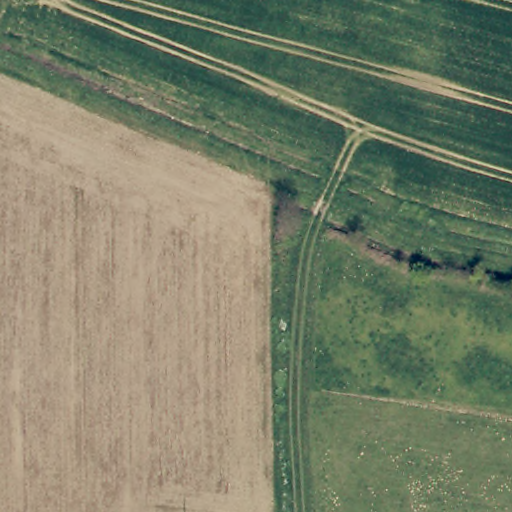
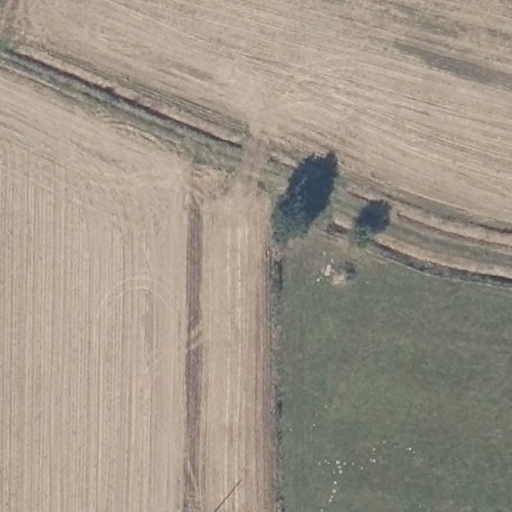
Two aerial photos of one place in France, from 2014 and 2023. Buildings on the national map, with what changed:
[]

